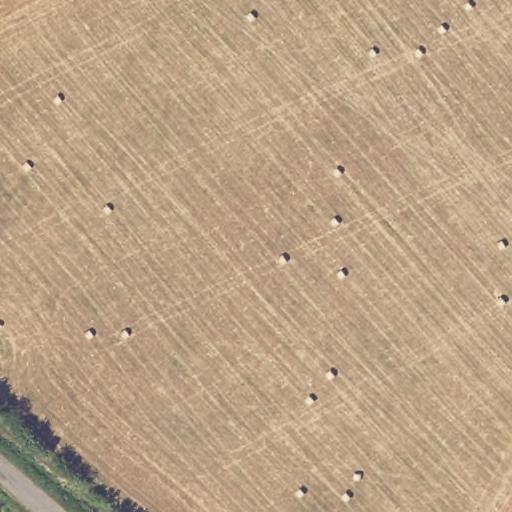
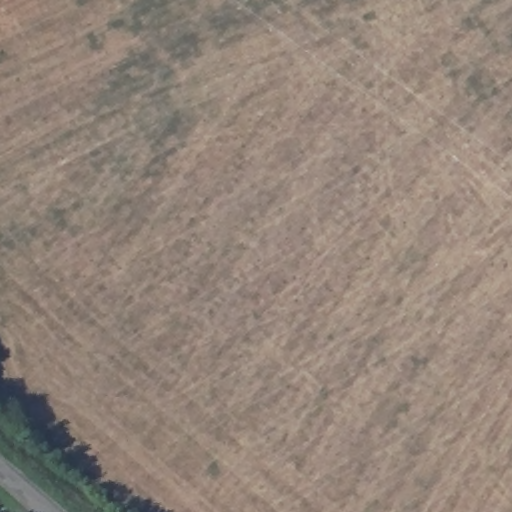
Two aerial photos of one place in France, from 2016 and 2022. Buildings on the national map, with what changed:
[]

